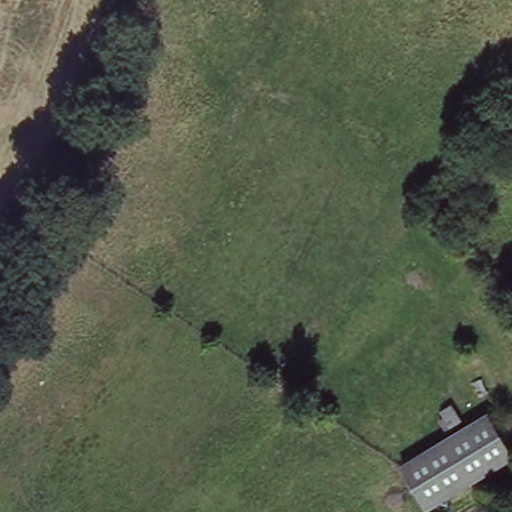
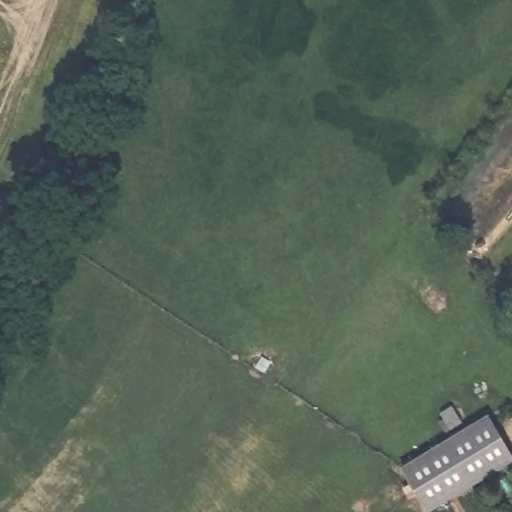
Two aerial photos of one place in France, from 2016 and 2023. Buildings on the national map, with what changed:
unchanged [(509,458),(425,510),(399,465),(483,414),(509,458)]

